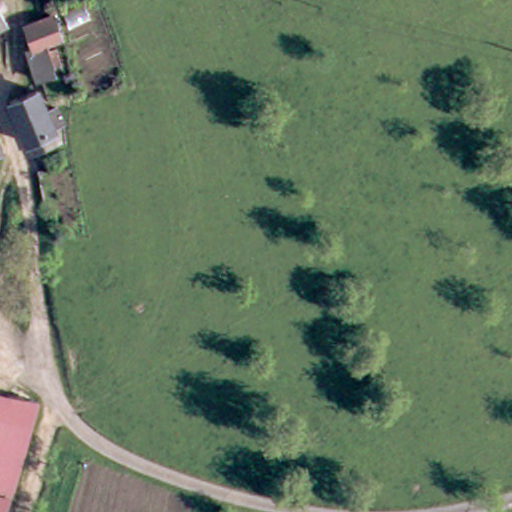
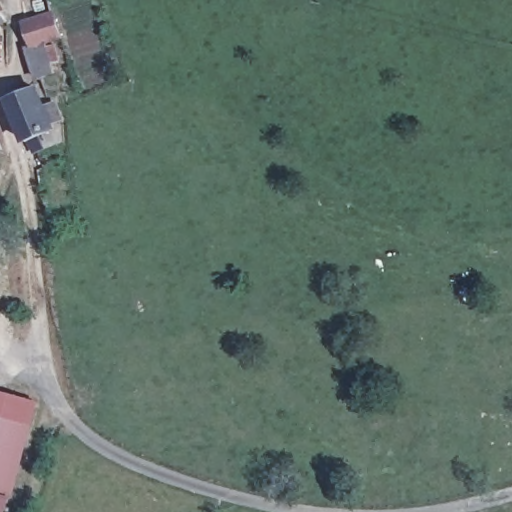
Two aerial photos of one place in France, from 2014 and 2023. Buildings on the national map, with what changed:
unchanged [(0,20),(0,7),(5,18),(0,20)]
unchanged [(25,44),(29,39),(23,19),(52,9),(59,35),(43,39),(53,72),(35,77),(25,44)]
unchanged [(23,138),(6,96),(34,85),(52,128),(43,131),(46,139),(33,144),(29,135),(23,138)]
unchanged [(80,234),(80,244),(69,244),(69,234),(80,234)]
unchanged [(13,512),(0,512),(0,397),(39,408),(13,512)]

